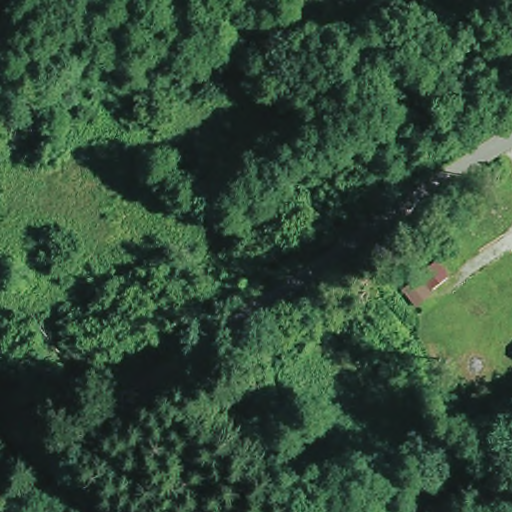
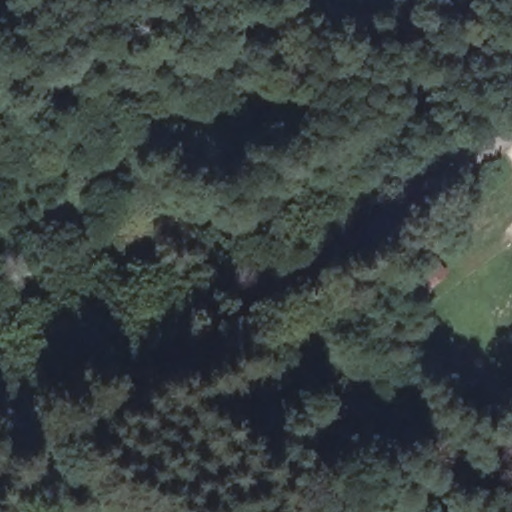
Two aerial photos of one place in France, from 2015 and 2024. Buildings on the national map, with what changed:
[]

